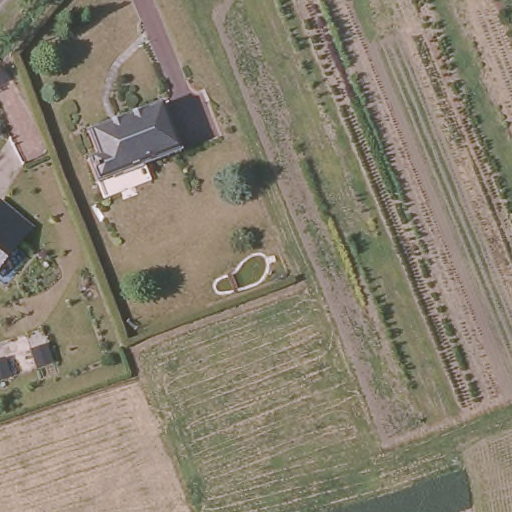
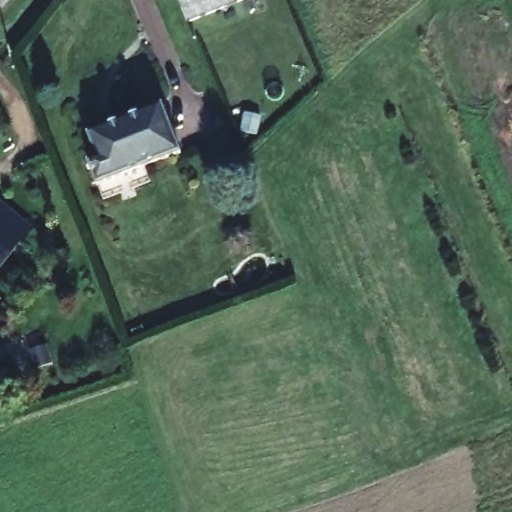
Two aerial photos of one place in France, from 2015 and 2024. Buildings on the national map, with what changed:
new [(178,0),(243,0),(188,22),(178,0)]
unchanged [(100,205),(94,187),(84,161),(96,157),(88,135),(164,108),(181,155),(137,172),(143,189),(100,205)]
unchanged [(34,231),(0,269),(0,203),(34,231)]
unchanged [(56,365),(0,383),(0,346),(44,331),(56,365)]

